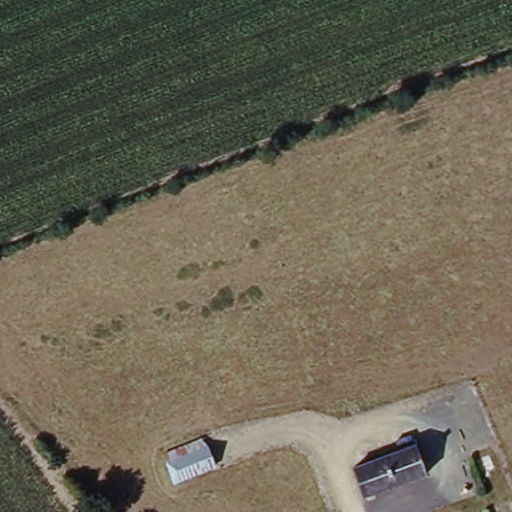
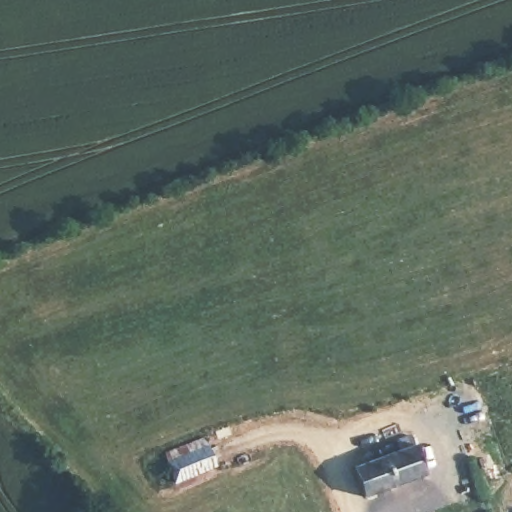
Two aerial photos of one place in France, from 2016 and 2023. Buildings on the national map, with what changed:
unchanged [(361,493),(351,461),(413,441),(423,472),(361,493)]

